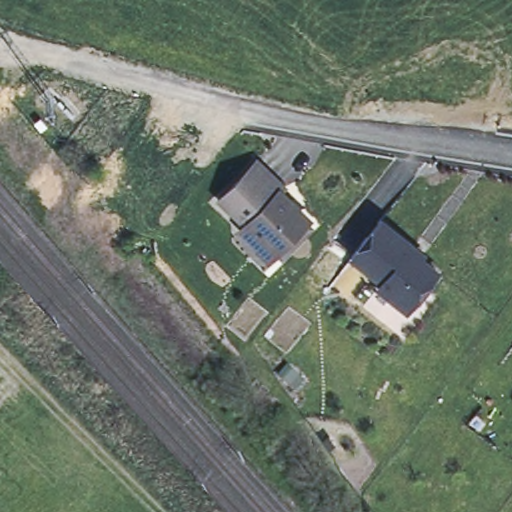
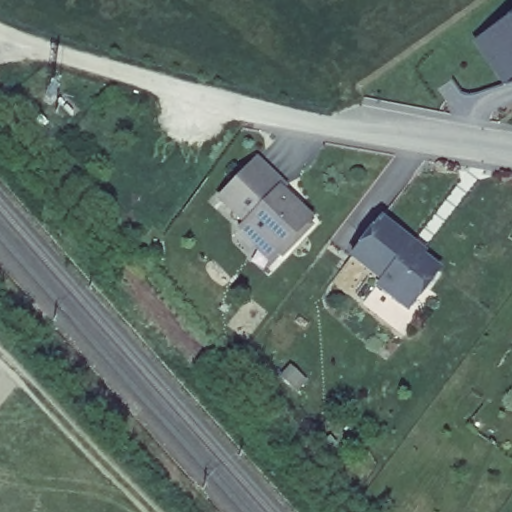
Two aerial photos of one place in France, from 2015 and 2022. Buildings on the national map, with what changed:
new [(507,72),(493,82),(462,45),(475,36),(512,8),(512,68),(507,72)]
unchanged [(253,248),(256,245),(238,228),(244,222),(215,199),(255,156),(282,182),(279,186),(295,200),(291,205),(310,221),(280,253),(270,265),(253,248)]
unchanged [(373,288),(378,282),(348,256),(381,215),(412,241),(408,245),(421,256),(389,301),(373,288)]
unchanged [(436,270),(402,313),(389,301),(421,256),(436,270)]

